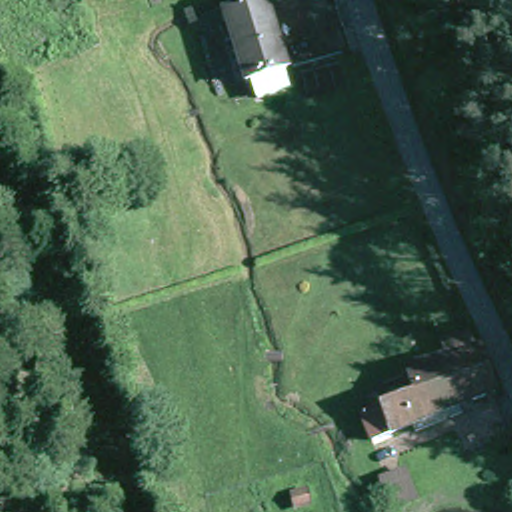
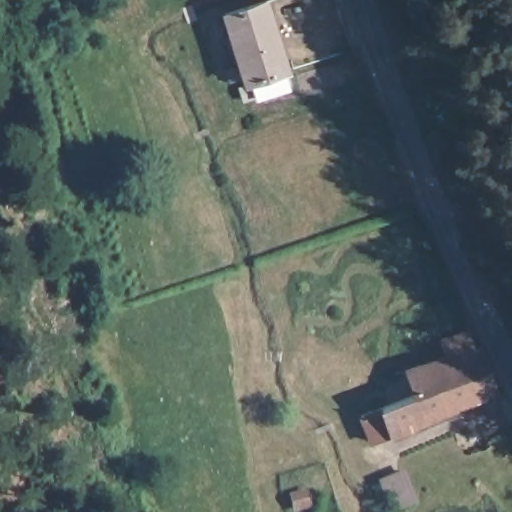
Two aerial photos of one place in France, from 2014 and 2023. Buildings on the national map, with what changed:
unchanged [(245,83),(240,69),(235,70),(212,8),(236,0),(256,0),(275,59),(279,72),(245,83)]
unchanged [(365,439),(358,413),(361,412),(415,396),(410,381),(484,361),(495,406),(456,416),(458,424),(410,437),(408,428),(370,438),(365,439)]
unchanged [(387,506),(380,477),(400,473),(408,471),(415,499),(387,506)]

